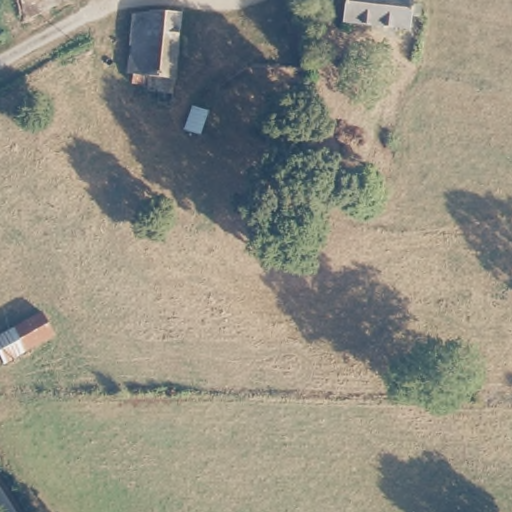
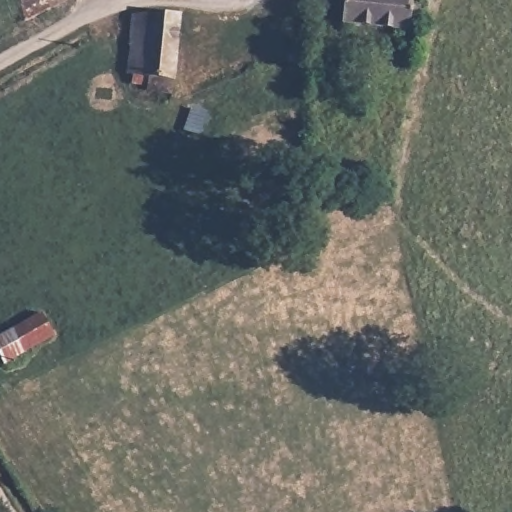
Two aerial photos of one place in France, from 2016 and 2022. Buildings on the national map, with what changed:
unchanged [(381,23),(342,17),(344,0),(383,0),(381,23)]
unchanged [(383,0),(415,0),(412,28),(381,23),(383,0)]
unchanged [(136,9),(186,10),(182,89),(157,87),(156,71),(134,69),(136,9)]
unchanged [(0,344),(0,333),(49,308),(59,331),(6,358),(0,344)]

